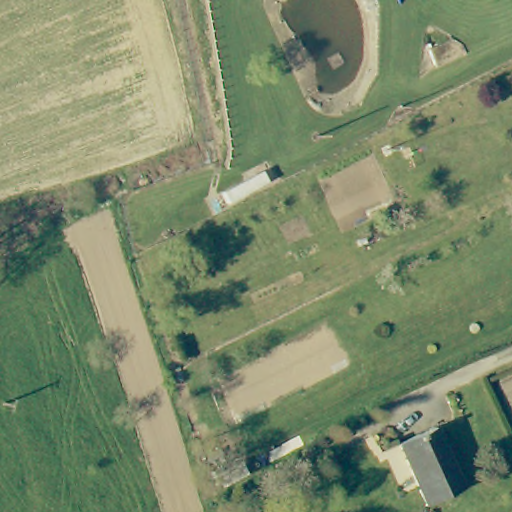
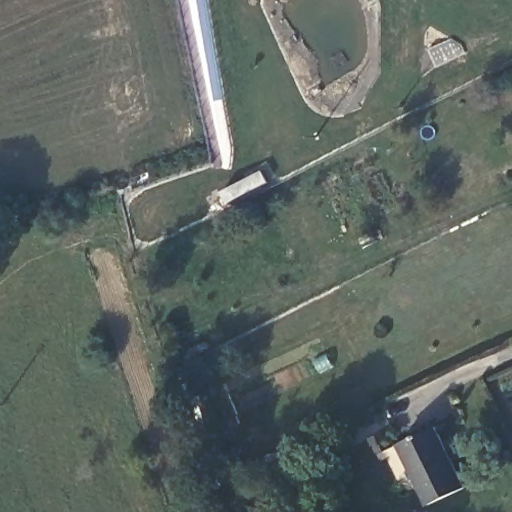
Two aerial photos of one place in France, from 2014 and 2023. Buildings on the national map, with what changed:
unchanged [(435,432),(463,493),(426,510),(397,448),(435,432)]

